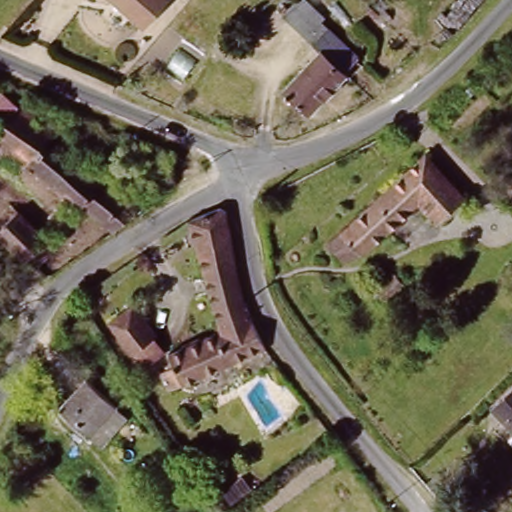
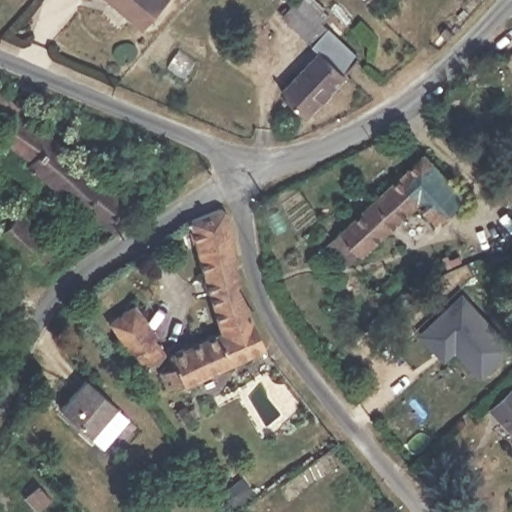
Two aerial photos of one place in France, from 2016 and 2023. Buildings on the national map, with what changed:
unchanged [(108,0),(165,0),(167,3),(141,31),(108,0)]
unchanged [(308,41),(283,18),(300,0),(311,0),(330,18),(322,26),(308,41)]
unchanged [(302,115),(279,91),(318,51),(313,46),(328,31),(357,60),(302,115)]
unchanged [(4,122),(6,123),(19,106),(35,118),(31,125),(90,172),(96,163),(140,197),(111,231),(78,204),(75,208),(30,175),(33,171),(0,145),(0,122),(2,121),(4,122)]
unchanged [(435,220),(417,201),(360,255),(357,252),(350,259),(330,238),(422,149),(464,194),(435,220)]
unchanged [(497,196),(512,182),(512,211),(497,196)]
unchanged [(46,272),(40,266),(35,272),(0,236),(0,220),(12,208),(60,259),(46,272)]
unchanged [(223,212),(242,302),(266,350),(170,394),(160,376),(176,368),(170,358),(230,330),(225,321),(220,324),(186,226),(223,212)]
unchanged [(383,304),(375,294),(393,276),(402,286),(383,304)]
new [(460,294),(512,345),(482,375),(447,341),(437,352),(420,335),(460,294)]
unchanged [(125,354),(110,331),(139,312),(155,335),(132,349),(125,354)]
new [(447,341),(456,349),(445,360),(437,352),(447,341)]
unchanged [(488,406),(512,382),(512,430),(488,406)]
unchanged [(133,425),(110,452),(60,411),(85,384),(133,425)]

